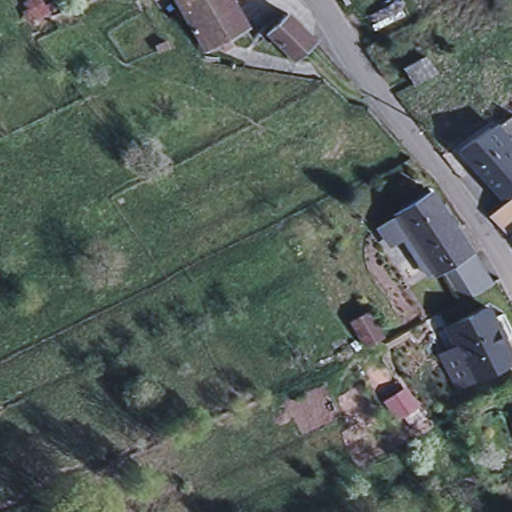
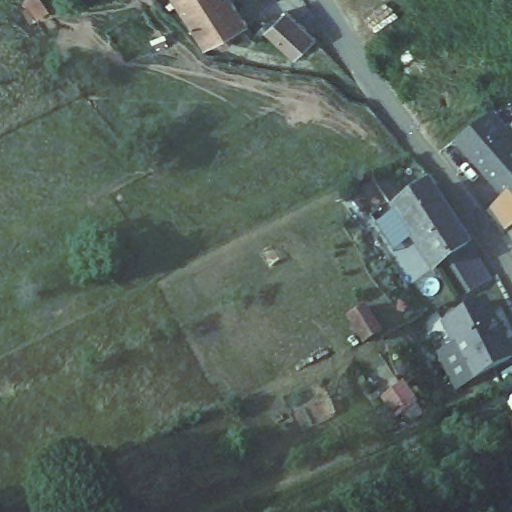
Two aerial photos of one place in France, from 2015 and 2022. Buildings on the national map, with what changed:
unchanged [(207,48),(178,0),(231,0),(246,25),(227,36),(230,43),(222,47),(218,41),(207,48)]
unchanged [(267,31),(287,11),(312,37),(315,39),(295,59),(267,31)]
unchanged [(401,64),(422,53),(435,69),(412,81),(401,64)]
unchanged [(488,212),(504,198),(457,145),(486,123),(488,125),(493,121),(504,132),(507,130),(512,136),(512,224),(505,228),(488,212)]
unchanged [(427,186),(467,245),(470,251),(440,266),(439,264),(433,268),(393,210),(427,186)]
unchanged [(489,281),(484,284),(460,298),(440,266),(470,251),(489,281)]
unchanged [(438,352),(455,344),(444,323),(485,302),(511,356),(471,377),(455,385),(438,352)]
unchanged [(365,307),(380,333),(365,342),(349,317),(365,307)]
unchanged [(505,409),(512,407),(512,428),(505,409)]

